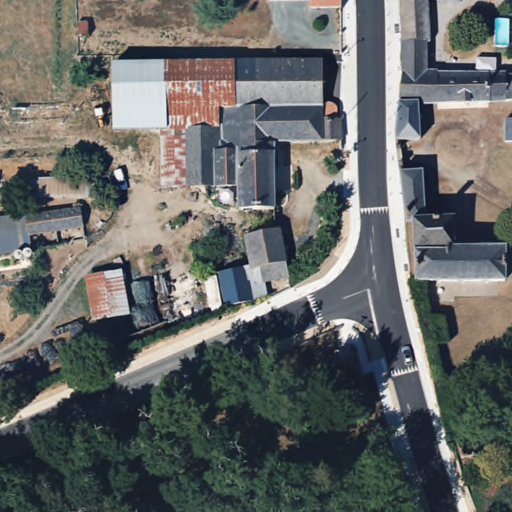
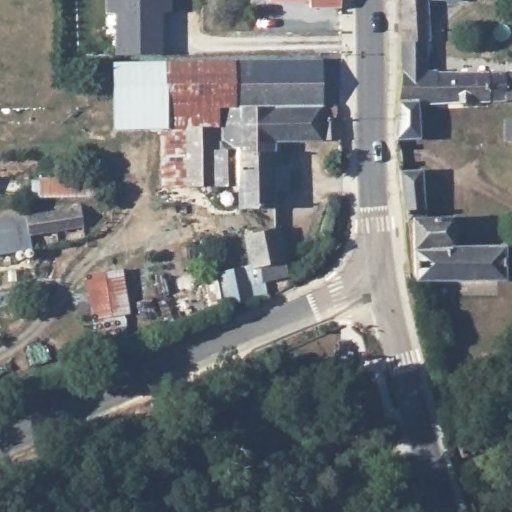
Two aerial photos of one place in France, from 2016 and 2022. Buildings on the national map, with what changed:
new [(162,12),(162,55),(114,55),(114,12),(106,12),(106,0),(172,0),(172,12),(162,12)]
unchanged [(310,9),(309,0),(339,0),(339,9),(310,9)]
unchanged [(429,45),(429,71),(437,70),(438,72),(489,69),(487,97),(415,104),(418,137),(393,140),(392,131),(405,70),(404,0),(431,0),(432,45),(429,45)]
unchanged [(323,60),(322,105),(326,103),(327,102),(331,103),(333,104),(337,107),(336,110),(334,117),(338,117),(338,139),(270,141),(274,207),(238,207),(237,185),(214,186),(212,151),(220,151),(217,107),(233,106),(232,61),(323,60)]
unchanged [(232,61),(233,106),(217,107),(220,151),(212,151),(214,186),(162,186),(161,126),(118,125),(117,62),(232,61)]
unchanged [(502,72),(512,72),(512,96),(503,96),(502,72)]
unchanged [(502,118),(512,116),(512,142),(503,141),(502,118)]
unchanged [(451,221),(451,251),(502,252),(503,285),(415,285),(412,223),(405,224),(397,175),(421,173),(424,219),(451,221)]
unchanged [(92,180),(94,199),(32,199),(32,180),(92,180)]
unchanged [(79,215),(82,233),(28,242),(25,224),(79,215)]
unchanged [(25,224),(28,242),(31,256),(0,261),(0,227),(25,224)]
unchanged [(244,234),(278,228),(287,273),(262,278),(259,265),(250,267),(250,265),(244,234)]
unchanged [(250,265),(250,267),(259,265),(262,278),(265,294),(224,301),(218,271),(250,265)]
unchanged [(131,269),(139,313),(85,323),(76,279),(131,269)]
unchanged [(508,443),(509,462),(493,462),(492,443),(508,443)]

